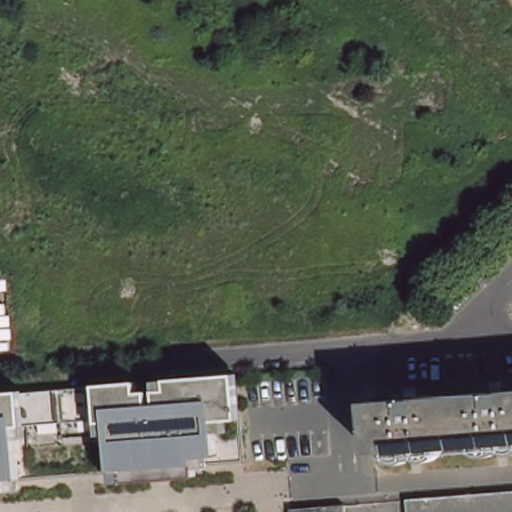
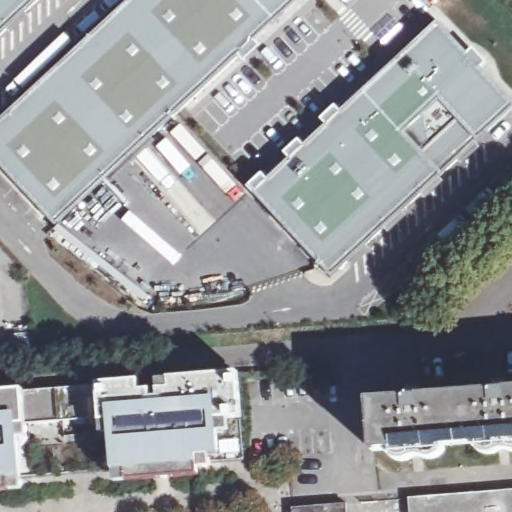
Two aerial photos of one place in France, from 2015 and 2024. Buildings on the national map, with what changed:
new [(37,0),(0,34),(0,0),(37,0)]
new [(260,46),(245,61),(240,55),(57,226),(0,165),(0,121),(130,0),(299,0),(255,41),(260,46)]
new [(290,159),(285,153),(299,140),(304,145),(327,125),(322,120),(335,106),(340,111),(438,21),(468,54),(474,49),(487,62),(481,67),(512,101),(512,110),(332,277),(254,192),(248,187),(262,174),(267,180),(290,159)]
unchanged [(237,417),(220,420),(224,470),(112,478),(107,433),(100,434),(95,384),(233,370),(237,417)]
unchanged [(37,387),(87,385),(95,384),(100,434),(20,440),(16,388),(37,387)]
unchanged [(480,445),(479,438),(442,442),(442,448),(438,452),(403,456),(394,452),(393,446),(374,448),(369,398),(512,386),(512,446),(489,448),(480,445)]
unchanged [(16,388),(20,440),(25,487),(0,489),(0,390),(16,388)]
unchanged [(412,494),(512,487),(512,512),(413,512),(412,494)]
unchanged [(294,505),(347,500),(349,512),(294,512),(294,505)]

